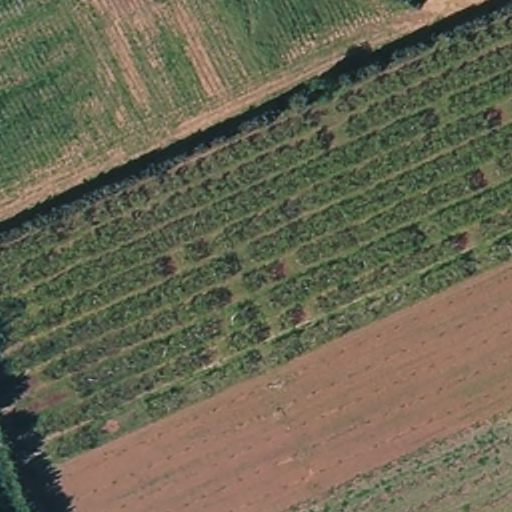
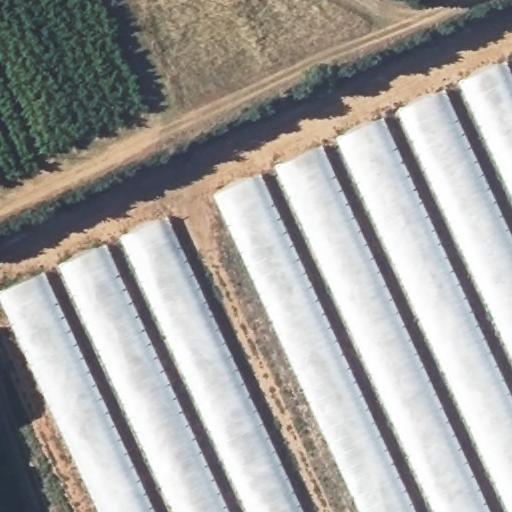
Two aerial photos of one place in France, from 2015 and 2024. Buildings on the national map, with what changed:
new [(216,194),(512,58),(512,512),(362,512),(216,194)]
new [(303,512),(101,512),(0,294),(167,217),(303,512)]

